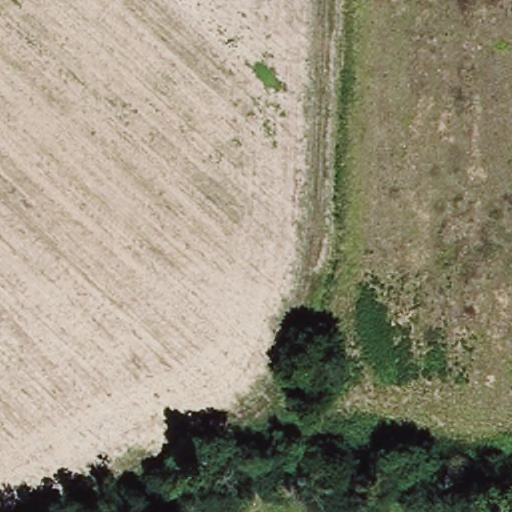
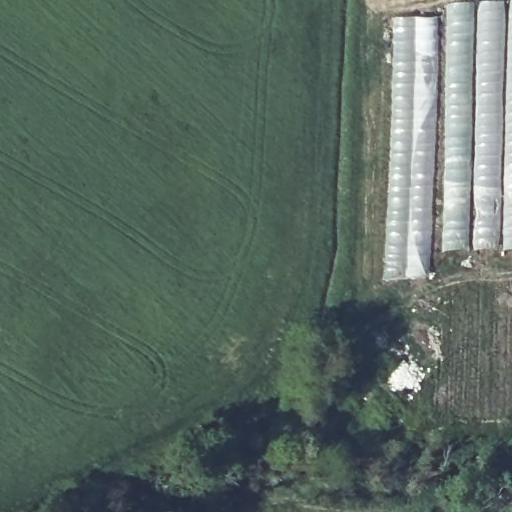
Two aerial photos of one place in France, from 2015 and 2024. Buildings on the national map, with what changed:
new [(445,5),(506,1),(501,143),(502,208),(501,249),(442,251),(445,5)]
new [(501,143),(506,1),(512,5),(512,249),(501,249),(502,208),(501,143)]
new [(390,127),(392,16),(436,16),(432,70),(426,70),(429,110),(435,110),(430,277),(392,277),(392,272),(385,273),(385,259),(390,127)]

